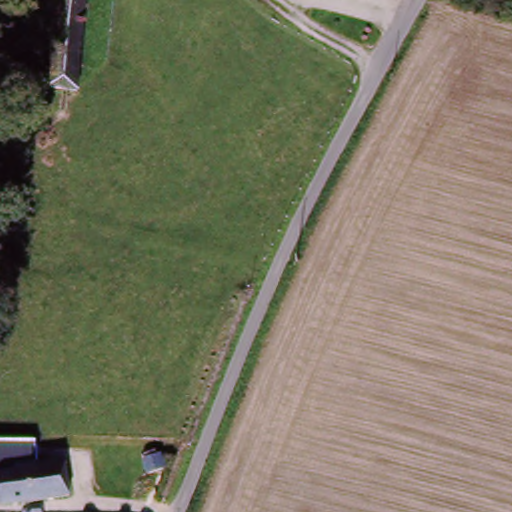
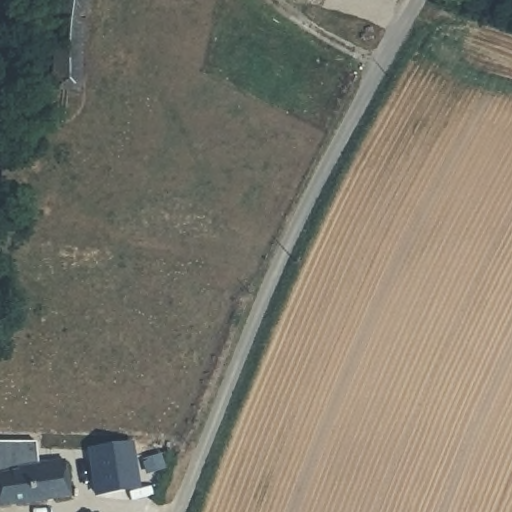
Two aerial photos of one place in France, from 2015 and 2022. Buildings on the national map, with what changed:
unchanged [(56,11),(39,9),(40,0),(87,0),(81,96),(47,92),(56,11)]
unchanged [(34,445),(35,470),(67,470),(67,505),(0,505),(0,445),(34,445)]
new [(135,445),(140,490),(99,495),(93,450),(135,445)]

